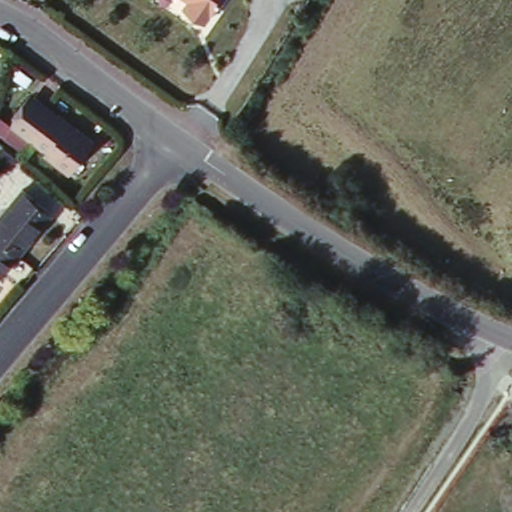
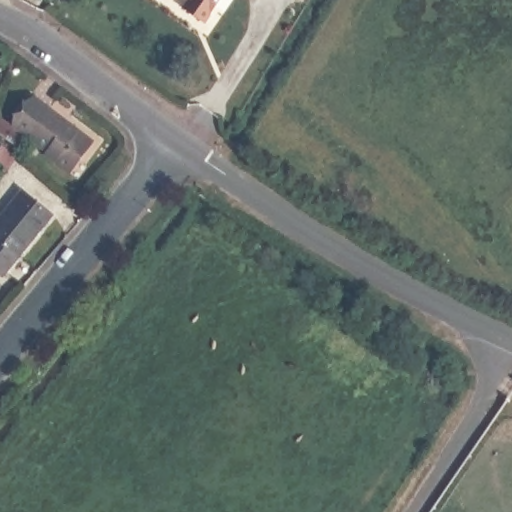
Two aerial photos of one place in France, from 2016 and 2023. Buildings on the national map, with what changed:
unchanged [(192,0),(213,0),(206,9),(192,0)]
unchanged [(82,136),(59,168),(33,147),(34,144),(15,130),(36,101),(82,136)]
unchanged [(42,219),(8,260),(0,270),(0,210),(12,194),(42,219)]

